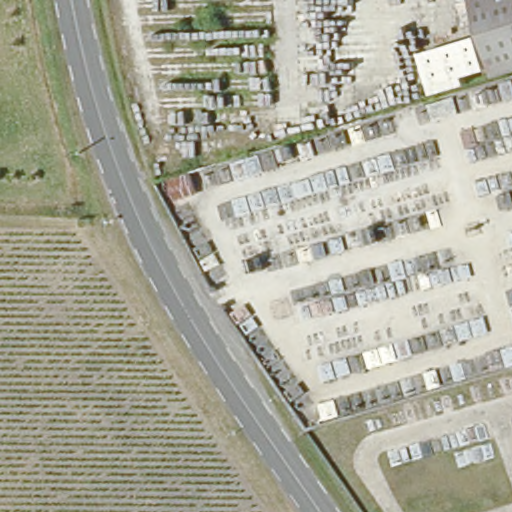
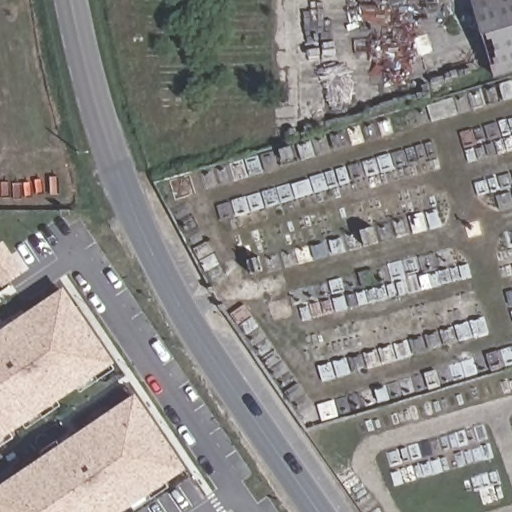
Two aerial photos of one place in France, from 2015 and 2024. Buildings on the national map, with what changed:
unchanged [(474,0),(512,0),(512,64),(493,69),(474,0)]
unchanged [(487,70),(431,86),(418,46),(476,29),(487,70)]
new [(5,240),(26,272),(3,285),(0,280),(0,244),(5,240)]
new [(66,289),(116,364),(0,441),(0,333),(66,289)]
new [(140,395),(189,469),(127,512),(0,512),(0,488),(140,395)]
demolished [(258,506),(251,496),(262,489),(268,499),(258,506)]

